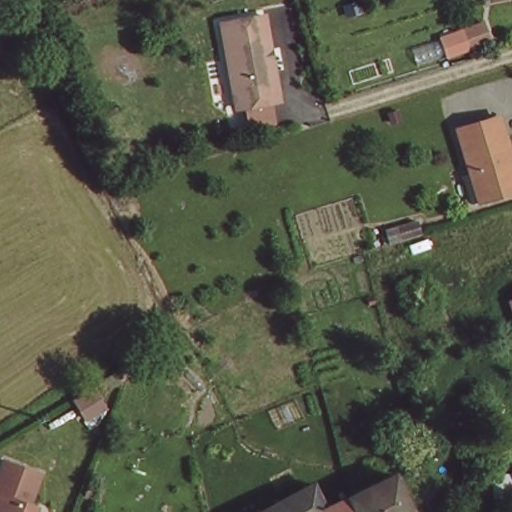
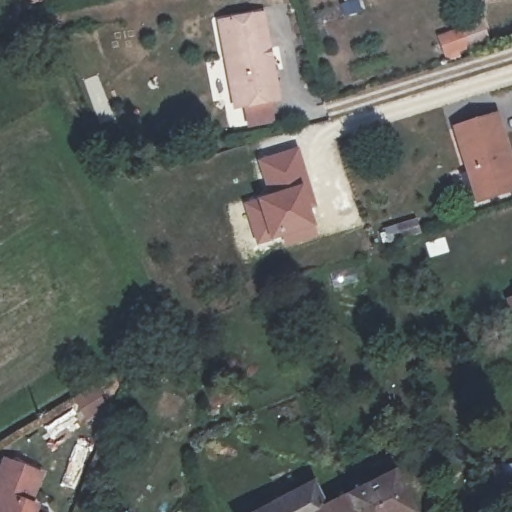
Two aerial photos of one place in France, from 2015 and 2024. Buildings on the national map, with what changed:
new [(35,6),(34,0),(68,0),(70,5),(36,12),(35,6)]
unchanged [(259,5),(276,88),(231,99),(212,12),(259,5)]
unchanged [(465,37),(489,31),(497,56),(473,62),(465,37)]
unchanged [(498,118),(512,158),(512,197),(473,210),(463,180),(470,177),(454,131),(498,118)]
new [(267,195),(257,159),(298,147),(317,208),(311,210),(320,237),(285,249),(281,239),(256,247),(243,202),(267,195)]
unchanged [(397,227),(419,221),(422,233),(401,240),(397,227)]
new [(512,297),(512,322),(504,300),(512,297)]
unchanged [(0,457),(3,450),(38,464),(28,496),(34,498),(31,508),(42,512),(0,512),(0,457)]
unchanged [(394,482),(408,512),(349,512),(345,503),(394,482)]
unchanged [(306,487),(319,512),(252,512),(306,487)]
unchanged [(342,512),(327,512),(339,506),(342,512)]

